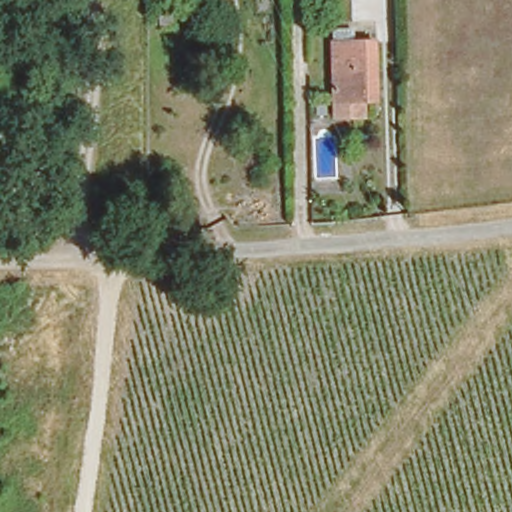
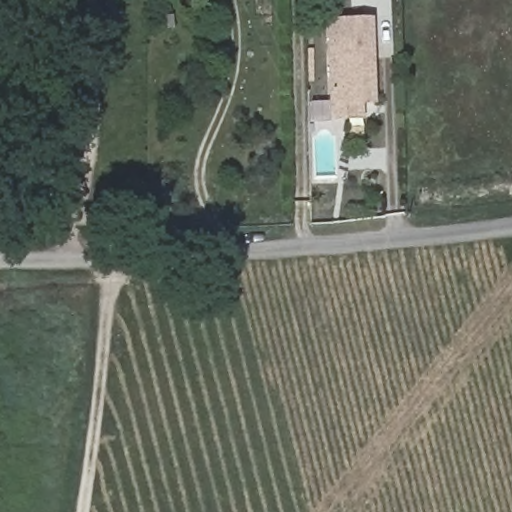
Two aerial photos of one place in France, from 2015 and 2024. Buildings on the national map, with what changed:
unchanged [(332,117),(331,97),(328,40),(371,38),(372,96),(361,96),(360,115),(332,117)]

